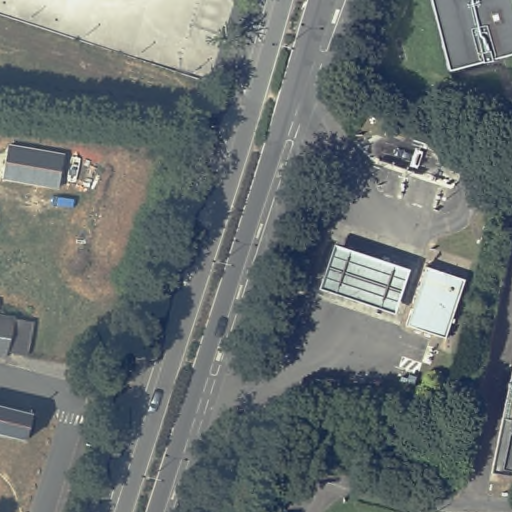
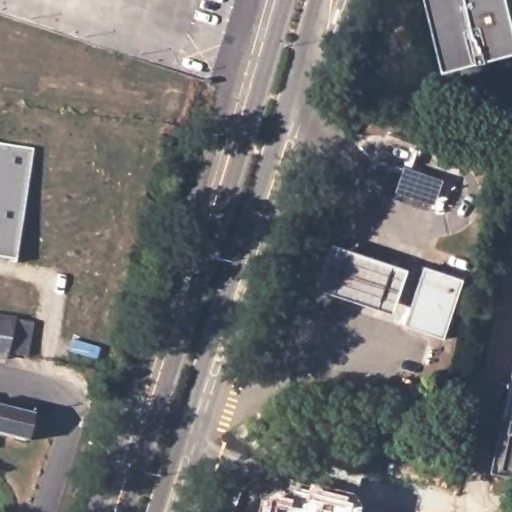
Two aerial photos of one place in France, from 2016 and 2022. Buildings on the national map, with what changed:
unchanged [(493,61),(493,62),(483,65),(483,64),(449,72),(431,0),(512,0),(512,56),(493,61)]
unchanged [(512,105),(512,121),(499,117),(503,104),(512,105)]
new [(15,262),(0,260),(0,143),(33,149),(15,262)]
demolished [(8,145),(64,155),(58,189),(3,178),(8,145)]
unchanged [(409,270),(396,312),(321,287),(335,246),(409,270)]
unchanged [(424,262),(467,277),(445,342),(402,328),(424,262)]
unchanged [(26,357),(7,353),(6,359),(0,358),(0,317),(32,322),(26,357)]
unchanged [(495,473),(512,392),(512,477),(495,473)]
unchanged [(38,414),(31,442),(13,437),(0,433),(0,404),(37,414),(38,414)]

